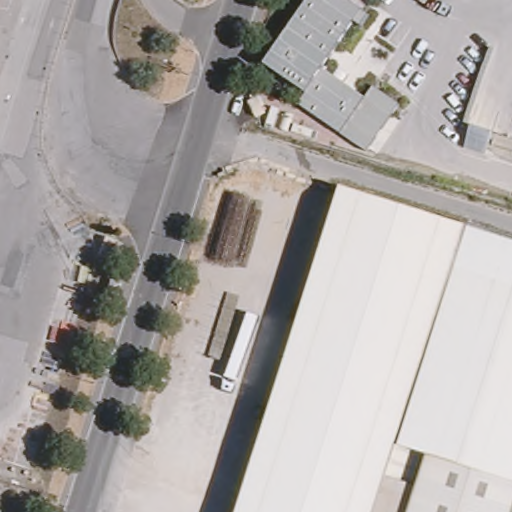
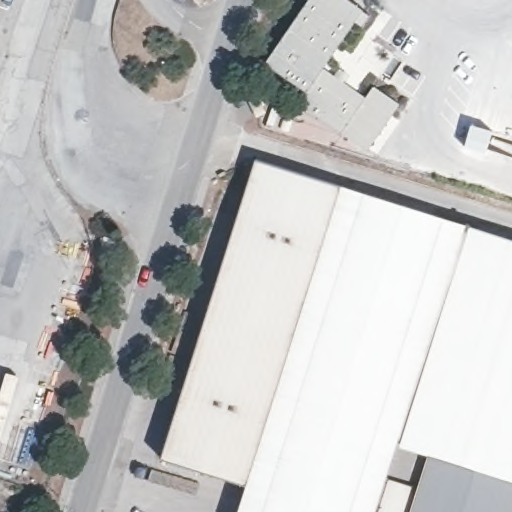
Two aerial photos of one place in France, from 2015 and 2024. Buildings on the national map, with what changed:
unchanged [(357,0),(368,7),(329,66),(286,38),(311,0),(357,0)]
unchanged [(324,73),(361,99),(371,86),(399,105),(365,155),(295,106),(303,96),(263,69),(286,38),(329,66),(324,73)]
new [(245,484),(163,458),(257,161),(338,186),(245,484)]
unchanged [(414,491),(386,481),(376,512),(235,512),(338,186),(512,240),(512,512),(407,512),(414,491)]
unchanged [(115,241),(110,259),(97,255),(103,238),(115,241)]
unchanged [(110,274),(123,279),(117,298),(103,294),(110,274)]
new [(386,481),(414,491),(407,512),(376,512),(386,481)]

